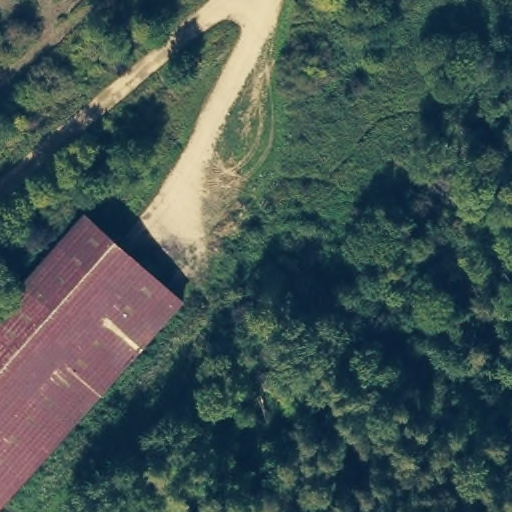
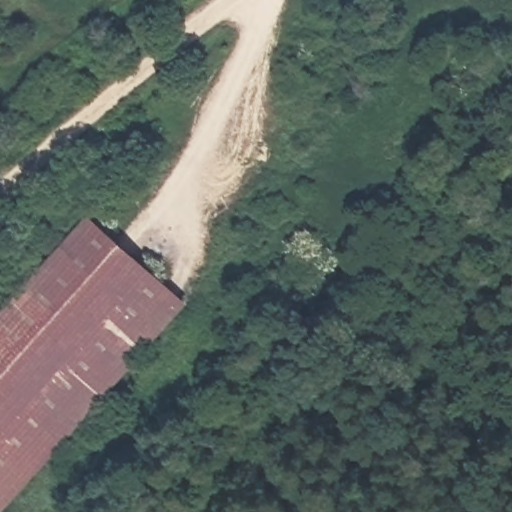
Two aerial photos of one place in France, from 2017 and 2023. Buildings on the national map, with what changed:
unchanged [(84,208),(189,302),(2,512),(0,511),(0,303),(84,208)]

